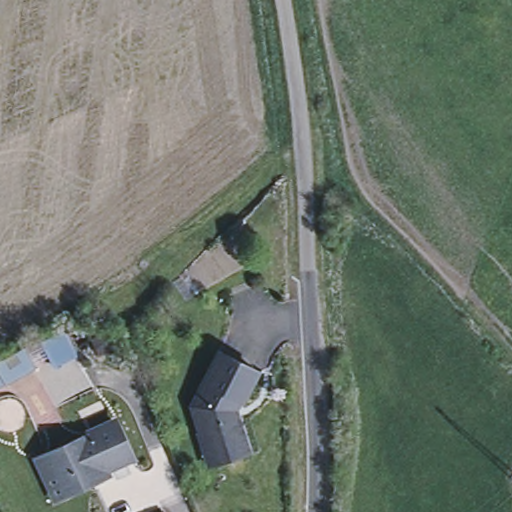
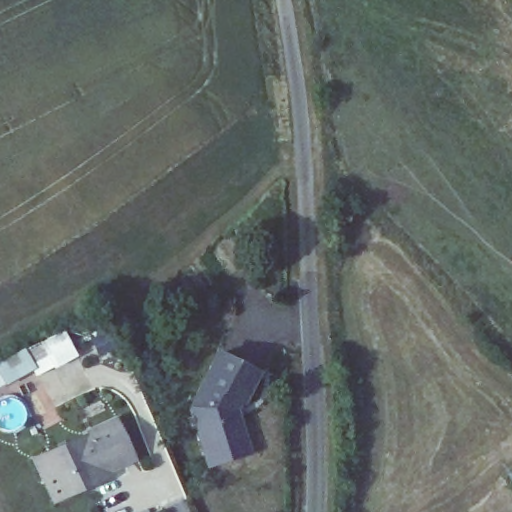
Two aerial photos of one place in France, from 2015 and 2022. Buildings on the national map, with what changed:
unchanged [(193,434),(196,433),(188,407),(217,352),(256,373),(239,406),(231,407),(244,454),(218,462),(203,467),(193,434)]
unchanged [(48,456),(88,437),(88,433),(114,420),(132,457),(105,470),(103,466),(92,472),(95,479),(57,497),(48,478),(39,460),(48,456)]

